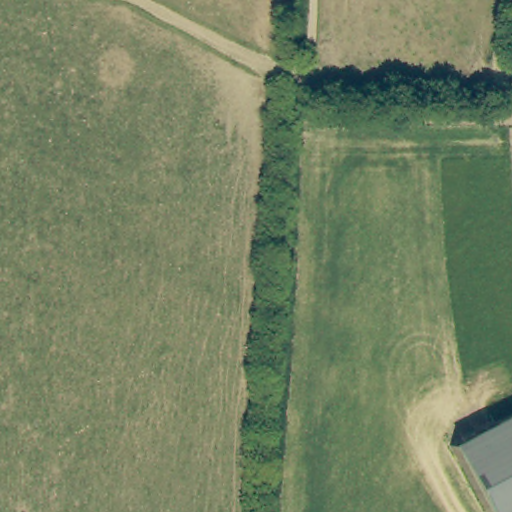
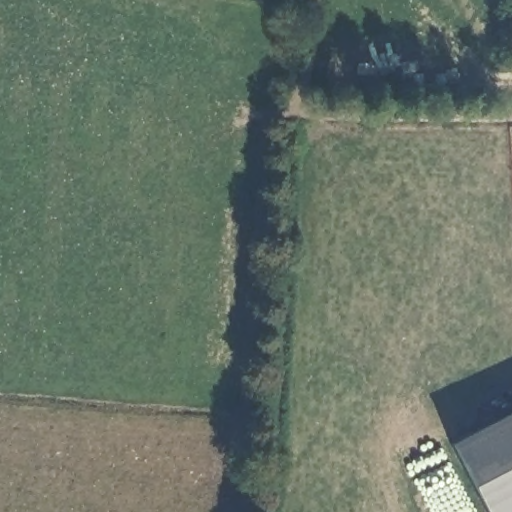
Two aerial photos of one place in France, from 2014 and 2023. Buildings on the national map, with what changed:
unchanged [(484,512),(448,444),(512,411),(512,512),(484,512)]

